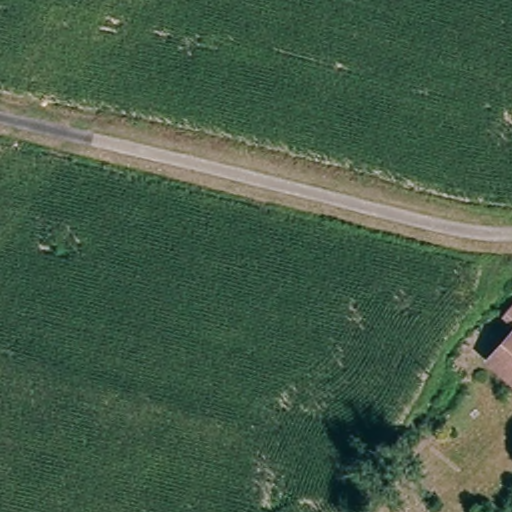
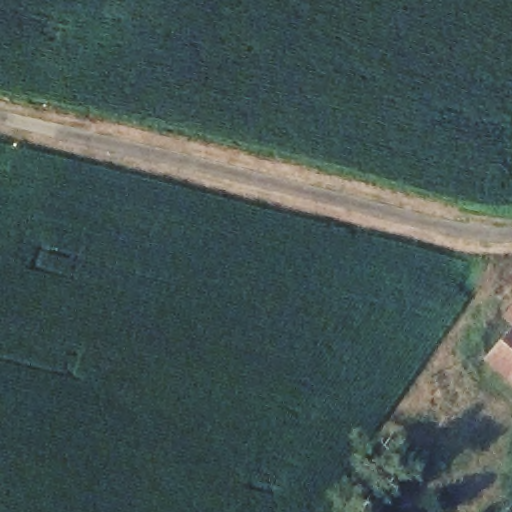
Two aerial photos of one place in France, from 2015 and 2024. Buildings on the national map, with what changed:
unchanged [(512,307),(512,326),(503,318),(512,307)]
unchanged [(512,343),(512,382),(493,367),(512,343)]

